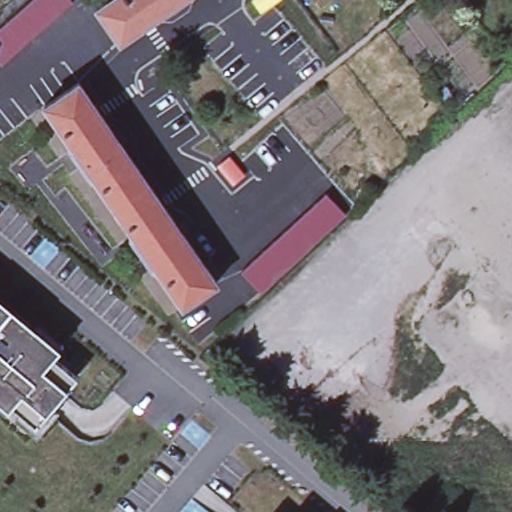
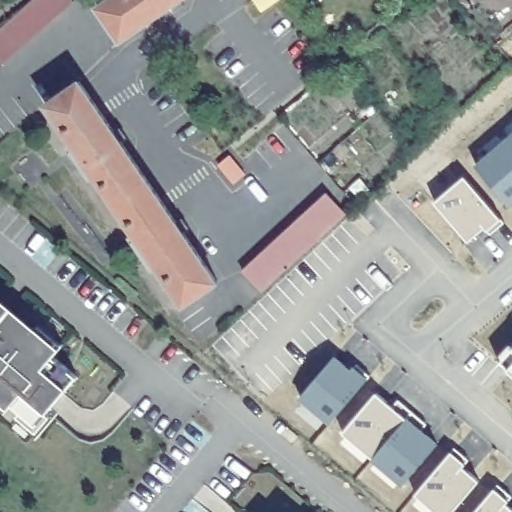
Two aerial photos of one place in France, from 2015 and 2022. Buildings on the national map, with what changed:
unchanged [(70,0),(75,5),(3,69),(0,65),(0,34),(39,0),(70,0)]
unchanged [(98,10),(113,0),(185,0),(121,44),(98,10)]
unchanged [(47,109),(82,85),(150,186),(115,210),(47,109)]
new [(512,211),(510,212),(475,169),(512,137),(512,211)]
new [(463,181),(501,222),(487,236),(483,232),(466,247),(432,206),(463,181)]
unchanged [(219,286),(182,310),(115,210),(150,186),(219,286)]
unchanged [(264,257),(273,247),(285,237),(295,227),(305,218),(315,207),(327,197),(345,217),(335,228),(325,238),(314,247),(304,257),(293,267),(284,277),(272,287),(262,297),(242,276),(253,266),(264,257)]
unchanged [(21,321),(57,352),(54,357),(77,377),(37,426),(0,395),(0,303),(21,321)]
new [(512,376),(501,365),(512,353),(512,376)]
new [(335,358),(350,373),(352,369),(367,381),(329,427),(298,402),(335,358)]
new [(375,397),(437,447),(400,488),(341,437),(375,397)]
new [(450,455),(464,467),(460,472),(477,485),(454,512),(428,512),(413,500),(450,455)]
new [(506,504),(504,507),(510,512),(476,512),(493,492),(506,504)]

